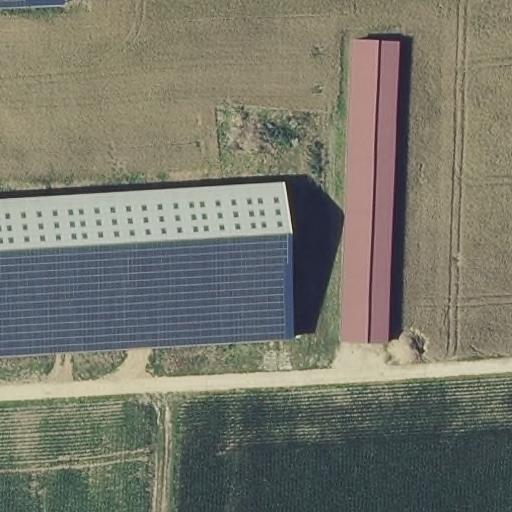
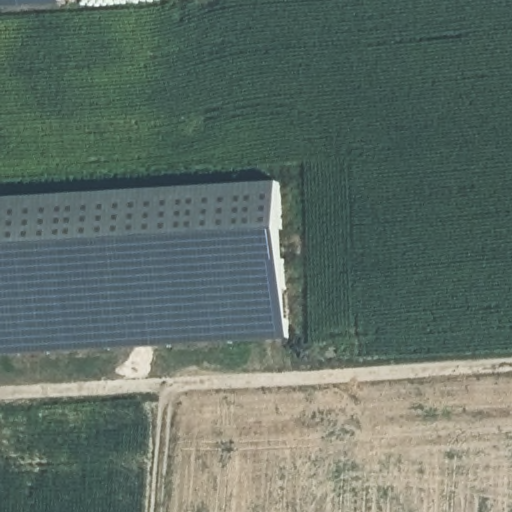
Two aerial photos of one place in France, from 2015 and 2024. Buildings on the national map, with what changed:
unchanged [(0,0),(64,0),(64,6),(0,9),(0,0)]
demolished [(335,343),(347,37),(397,39),(387,347),(335,343)]
unchanged [(285,344),(0,362),(0,201),(276,184),(285,344)]

